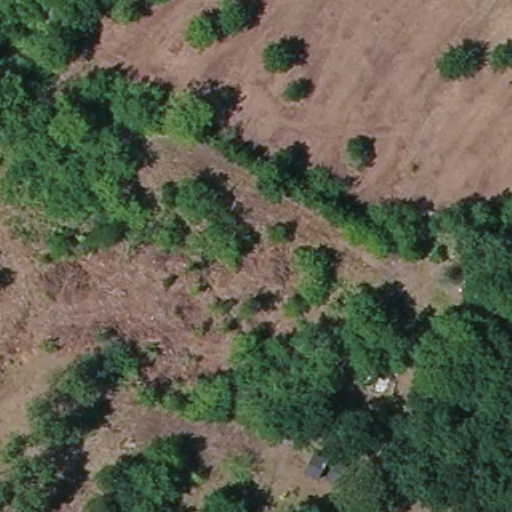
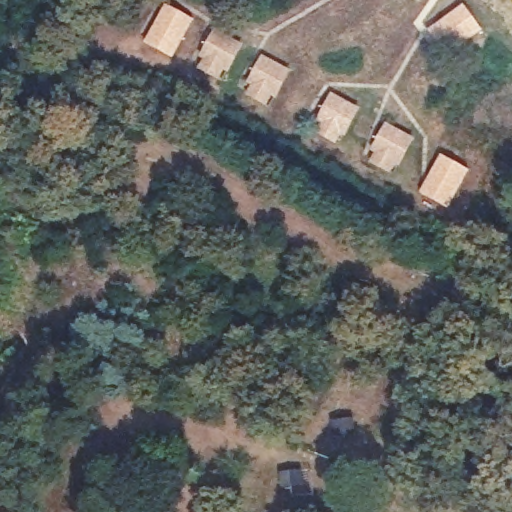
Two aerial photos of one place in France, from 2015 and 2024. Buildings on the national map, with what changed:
new [(463,4),(483,32),(447,57),(427,30),(463,4)]
new [(166,5),(195,20),(174,59),(145,43),(166,5)]
new [(245,45),(230,74),(225,72),(220,82),(199,70),(204,60),(199,58),(216,29),(245,45)]
new [(293,71),(277,101),(272,98),(267,107),(247,95),(252,86),(247,84),(263,55),(293,71)]
new [(363,109),(346,139),(341,136),(336,145),(316,134),(321,125),(316,122),(332,93),(363,109)]
new [(417,139),(401,169),(396,166),(391,175),(370,163),(375,154),(371,151),(387,122),(417,139)]
new [(441,155),(470,171),(448,210),(419,194),(441,155)]

